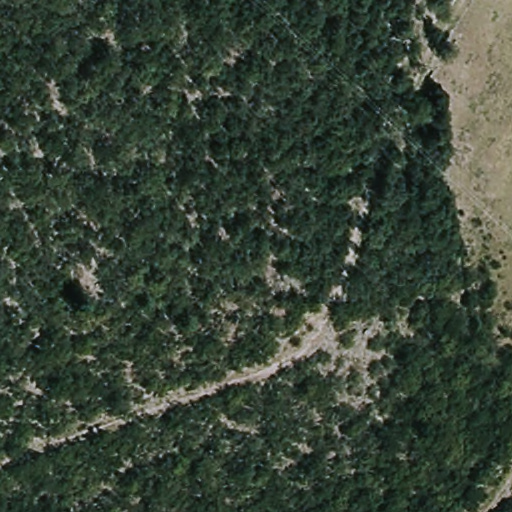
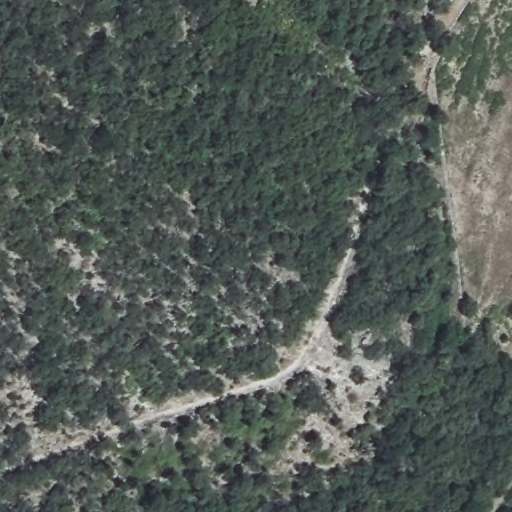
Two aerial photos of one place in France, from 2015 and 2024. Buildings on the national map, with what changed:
[]

